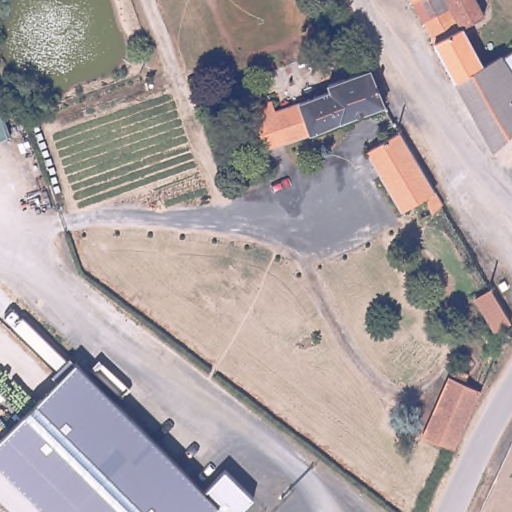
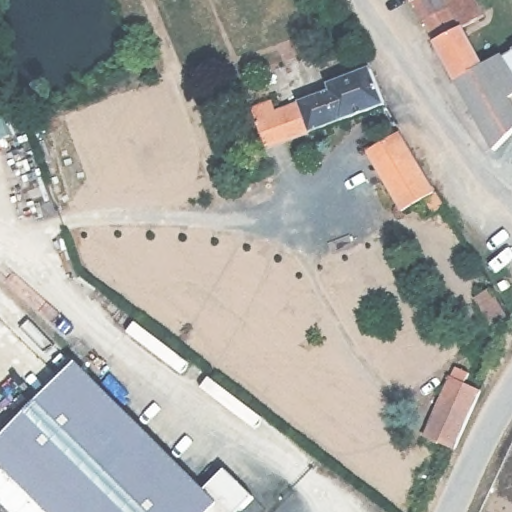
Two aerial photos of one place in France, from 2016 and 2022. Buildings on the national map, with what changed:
unchanged [(483,65),(457,81),(424,22),(412,0),(476,0),(477,2),(485,16),(463,29),(483,65)]
unchanged [(503,56),(512,50),(512,71),(503,56)]
unchanged [(483,65),(502,55),(503,56),(512,71),(512,96),(509,98),(512,103),(512,133),(495,150),(457,81),(483,65)]
unchanged [(267,147),(251,107),(273,99),(277,110),(331,91),(329,85),(370,68),(385,105),(267,147)]
unchanged [(0,142),(0,114),(9,139),(0,142)]
unchanged [(404,210),(366,144),(397,126),(436,191),(404,210)]
unchanged [(496,330),(477,298),(493,288),(512,320),(496,330)]
unchanged [(424,430),(450,371),(452,372),(457,361),(470,368),(467,377),(482,385),(456,445),(424,430)]
unchanged [(0,440),(72,367),(201,495),(222,474),(250,502),(241,512),(40,512),(0,472),(0,440)]

